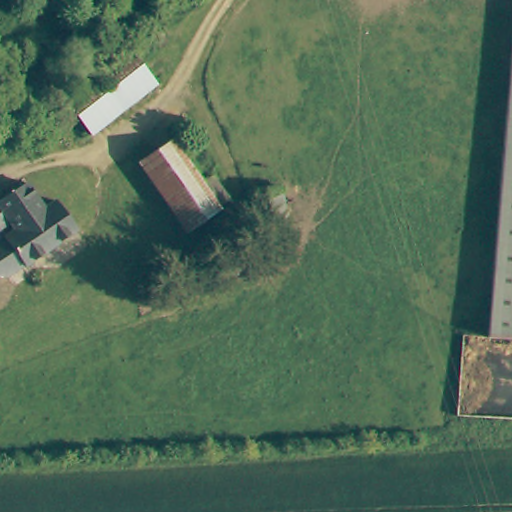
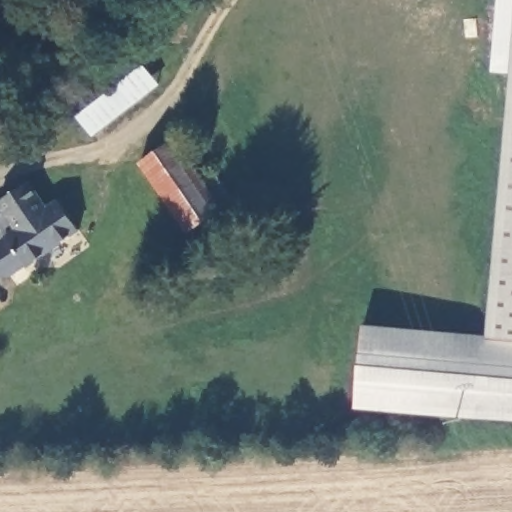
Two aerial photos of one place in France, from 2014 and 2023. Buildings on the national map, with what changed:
unchanged [(127,45),(153,82),(83,130),(59,92),(127,45)]
unchanged [(512,69),(512,340),(479,337),(512,69)]
unchanged [(187,134),(211,166),(196,177),(221,211),(189,235),(140,169),(187,134)]
unchanged [(26,267),(24,263),(7,275),(0,277),(0,202),(28,182),(30,186),(46,209),(58,200),(60,203),(79,230),(26,267)]
unchanged [(272,191),(279,190),(290,238),(259,244),(246,198),(272,191)]
new [(479,337),(512,340),(512,419),(356,407),(361,326),(479,337)]

